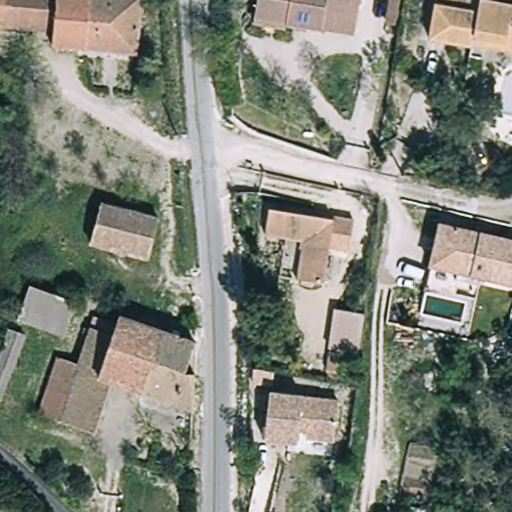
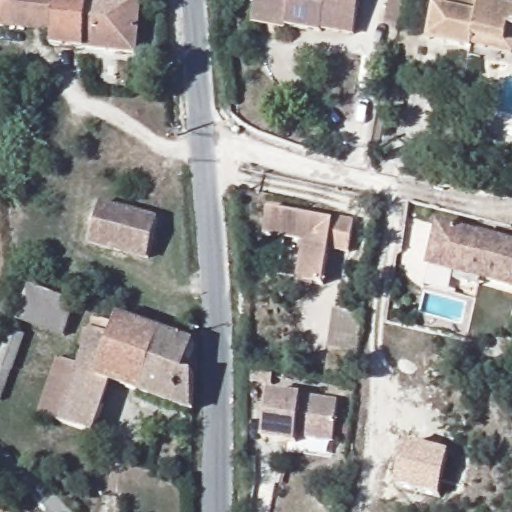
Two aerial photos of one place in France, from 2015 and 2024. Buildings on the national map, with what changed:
unchanged [(7,27),(0,27),(0,0),(8,0),(7,27)]
unchanged [(56,34),(7,27),(8,0),(59,0),(56,34)]
unchanged [(142,2),(137,60),(54,50),(56,34),(59,0),(117,0),(142,2)]
unchanged [(357,37),(255,21),(259,0),(363,0),(357,37)]
unchanged [(433,40),(440,0),(483,0),(512,6),(512,55),(480,49),(433,40)]
unchanged [(155,217),(147,257),(89,242),(99,202),(155,217)]
unchanged [(289,240),(264,237),(266,211),(331,217),(332,212),(351,213),(348,245),(329,243),(325,282),(299,279),(285,278),(289,240)]
unchanged [(479,272),(474,294),(422,282),(437,219),(512,236),(512,280),(479,272)]
unchanged [(71,302),(62,333),(13,316),(23,285),(71,302)]
unchanged [(116,321),(119,317),(192,343),(186,370),(194,373),(194,407),(111,378),(95,430),(63,419),(81,360),(85,347),(79,345),(84,327),(91,328),(95,314),(116,321)]
unchanged [(364,363),(357,363),(355,379),(330,377),(336,314),(368,317),(364,363)]
unchanged [(3,329),(18,335),(0,396),(0,337),(3,329)]
unchanged [(40,411),(58,352),(81,360),(63,419),(40,411)]
unchanged [(337,395),(333,435),(307,431),(308,420),(296,419),(295,435),(264,431),(269,387),(337,395)]
new [(451,452),(441,497),(398,490),(406,446),(451,452)]

